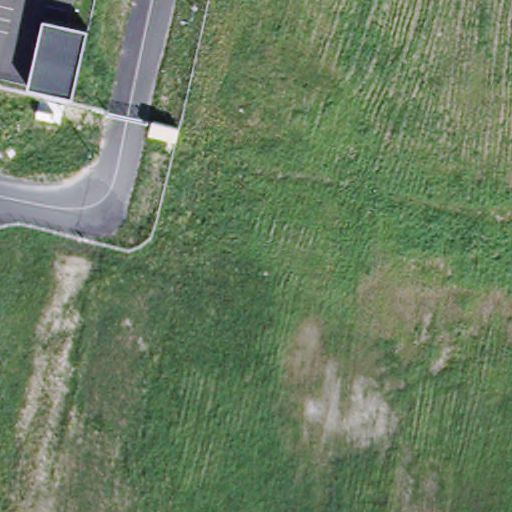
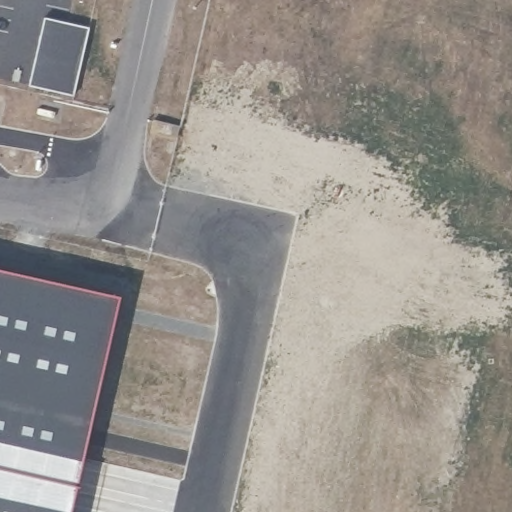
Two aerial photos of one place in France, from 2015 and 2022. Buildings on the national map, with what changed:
unchanged [(44,19),(89,29),(72,99),(28,87),(44,19)]
new [(74,512),(0,512),(0,269),(122,297),(74,512)]

